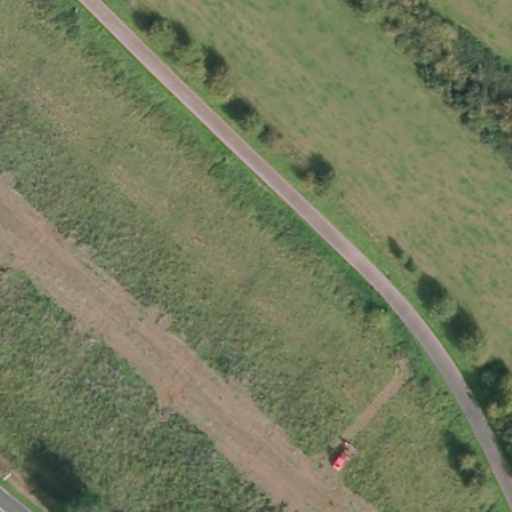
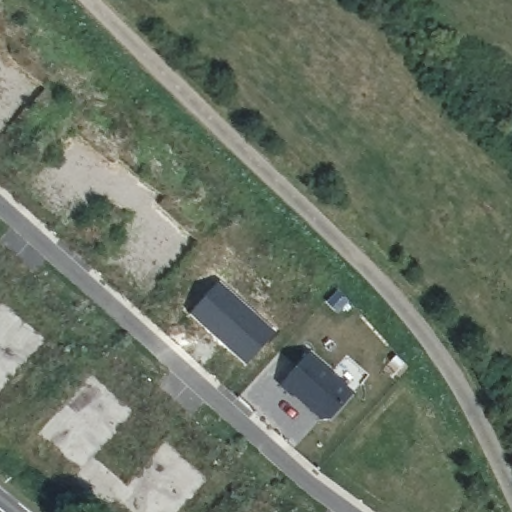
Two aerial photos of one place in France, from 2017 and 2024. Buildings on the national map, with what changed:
new [(275,331),(244,365),(189,315),(218,283),(275,331)]
new [(279,385),(309,353),(353,392),(323,424),(279,385)]

